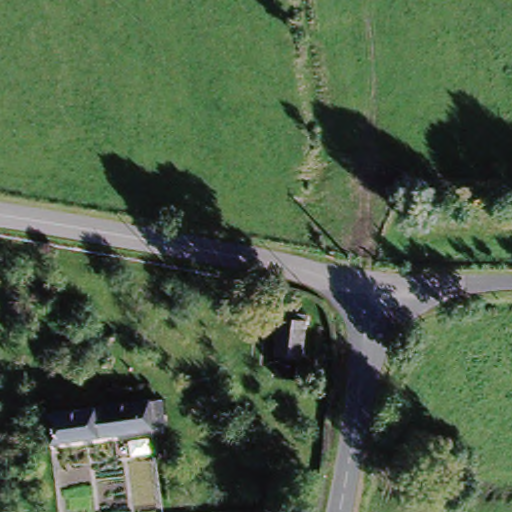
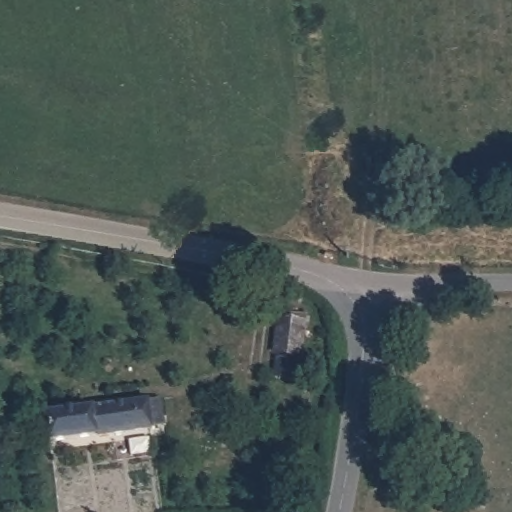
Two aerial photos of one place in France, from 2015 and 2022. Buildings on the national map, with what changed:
unchanged [(311,330),(304,361),(289,357),(296,327),(311,330)]
unchanged [(52,444),(48,413),(153,398),(158,428),(52,444)]

